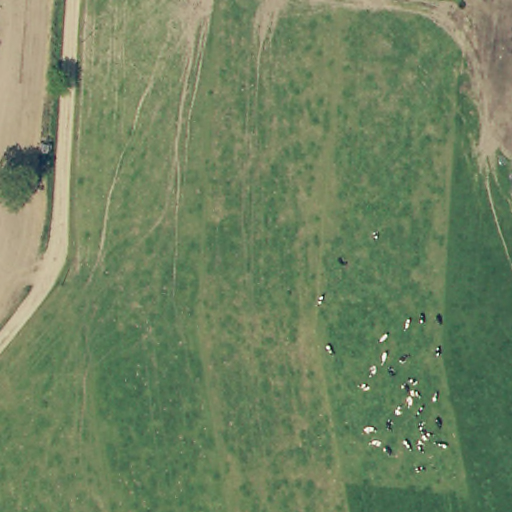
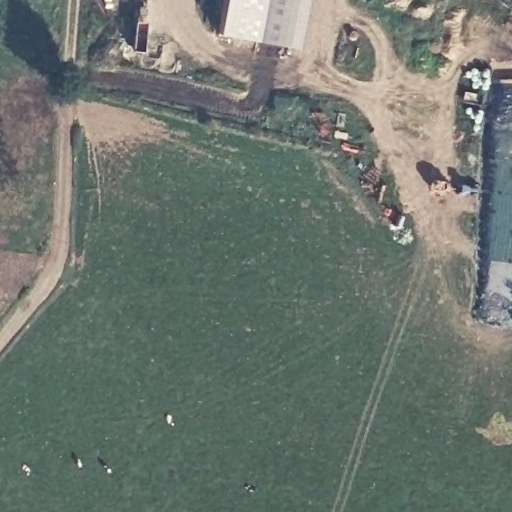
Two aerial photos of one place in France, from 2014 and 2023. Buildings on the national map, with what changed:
new [(223,0),(308,0),(299,50),(217,35),(223,0)]

